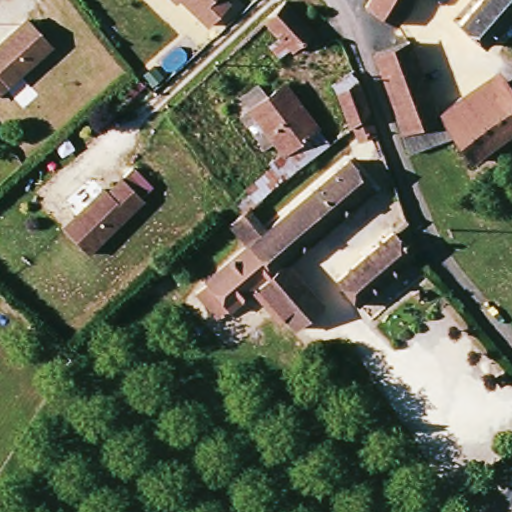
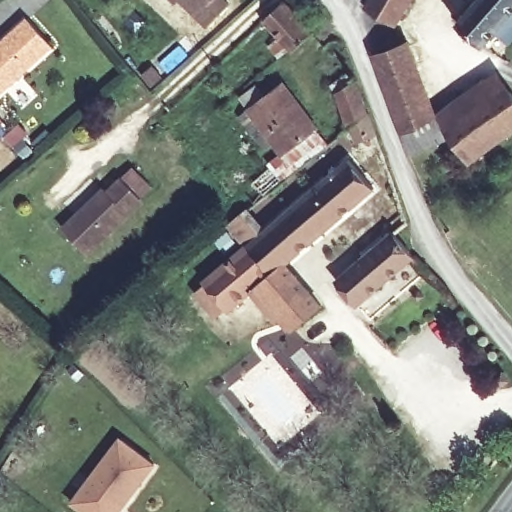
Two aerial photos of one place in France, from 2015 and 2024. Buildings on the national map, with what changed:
unchanged [(203,29),(177,0),(221,0),(228,8),(203,29)]
unchanged [(289,0),(314,28),(291,47),(261,15),(277,0),(289,0)]
unchanged [(363,2),(365,0),(408,0),(393,23),(363,2)]
unchanged [(455,23),(475,0),(512,0),(512,8),(479,44),(455,23)]
unchanged [(50,42),(0,91),(0,44),(29,18),(50,42)]
unchanged [(402,126),(374,53),(407,41),(436,112),(402,126)]
unchanged [(356,138),(344,121),(337,128),(331,119),(343,112),(336,85),(354,74),(366,107),(376,130),(356,138)]
unchanged [(253,111),(286,85),(319,127),(285,153),(253,111)]
unchanged [(474,161),(453,137),(409,152),(405,154),(398,128),(402,126),(436,112),(443,126),(506,87),(512,95),(512,133),(474,161)]
unchanged [(274,223),(354,160),(375,185),(285,259),(271,271),(250,242),(233,219),(246,210),(258,202),(274,223)]
unchanged [(64,218),(108,185),(113,190),(131,176),(149,201),(86,248),(64,218)]
unchanged [(359,304),(344,287),(338,280),(393,230),(416,255),(359,304)]
unchanged [(250,242),(271,271),(261,278),(230,304),(206,274),(250,242)]
unchanged [(299,323),(261,278),(271,271),(285,259),(304,283),(321,305),(299,323)]
new [(117,437),(151,462),(116,512),(84,512),(71,502),(117,437)]

